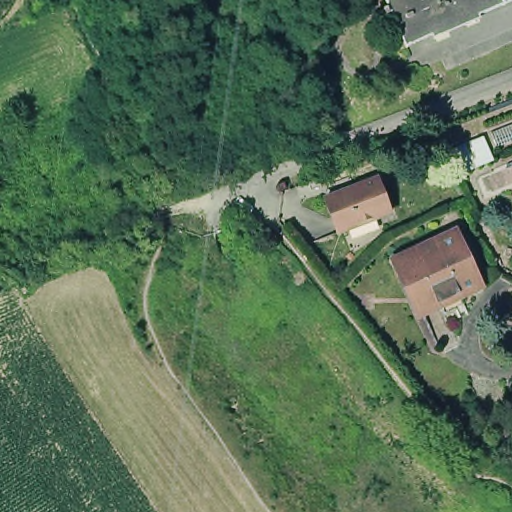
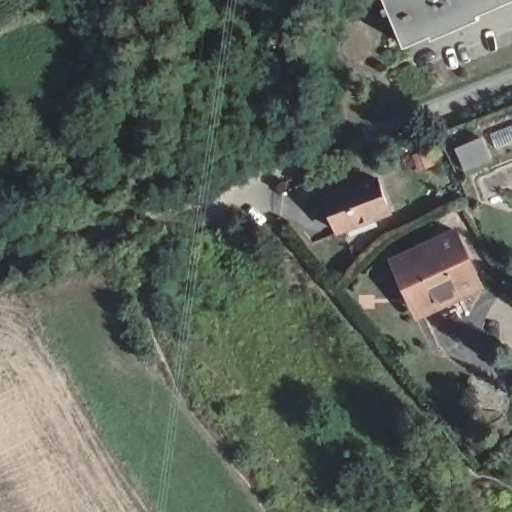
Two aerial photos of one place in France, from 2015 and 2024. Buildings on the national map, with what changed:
unchanged [(500,0),(504,10),(503,11),(501,5),(462,21),(463,24),(446,31),(445,29),(405,46),(408,51),(407,52),(405,46),(404,47),(385,3),(390,0),(500,0)]
unchanged [(505,10),(504,10),(500,0),(512,0),(503,4),(505,10)]
unchanged [(384,15),(387,13),(390,19),(387,21),(384,15)]
unchanged [(497,148),(491,134),(512,125),(512,142),(497,148)]
unchanged [(493,161),(465,172),(455,149),(483,139),(493,161)]
unchanged [(372,179),(386,214),(335,233),(321,198),(372,179)]
unchanged [(445,315),(440,303),(420,312),(397,263),(442,242),(440,237),(454,230),(479,285),(460,294),(465,306),(445,315)]

